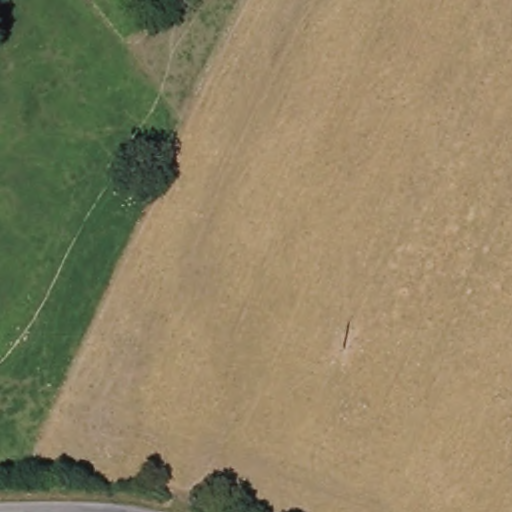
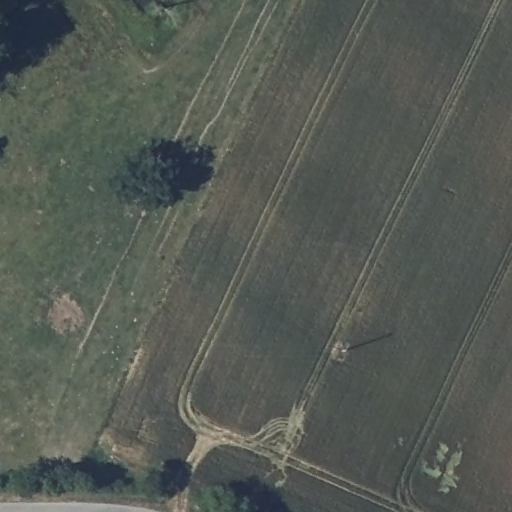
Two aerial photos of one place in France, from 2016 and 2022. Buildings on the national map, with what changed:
[]

